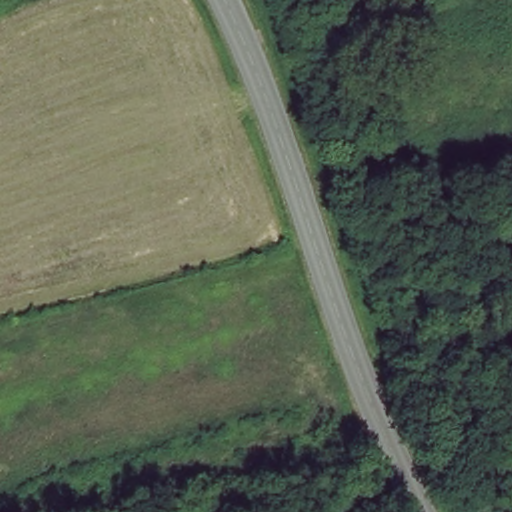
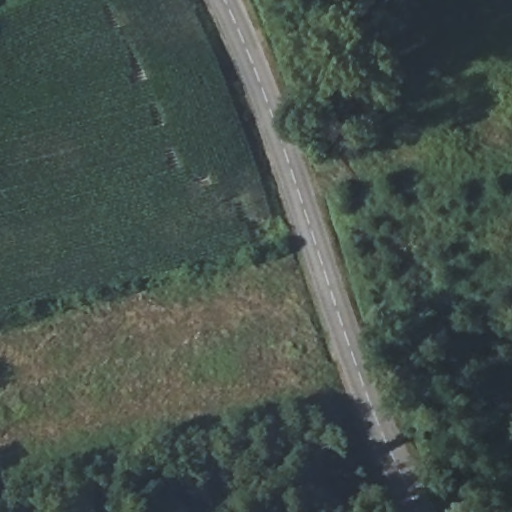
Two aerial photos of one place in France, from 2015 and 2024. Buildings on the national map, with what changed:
[]

